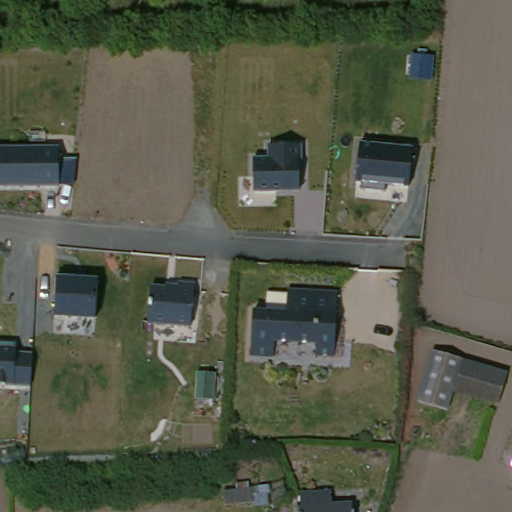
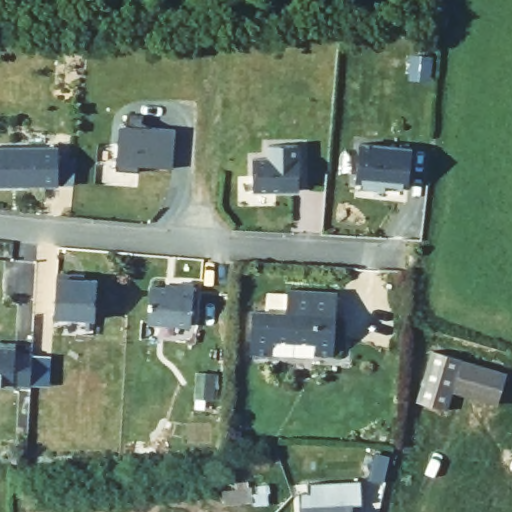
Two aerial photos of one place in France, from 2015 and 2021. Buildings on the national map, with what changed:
new [(120,125),(128,126),(128,115),(143,116),(142,126),(176,130),(172,167),(139,164),(138,171),(117,169),(120,125)]
unchanged [(411,147),(407,185),(383,183),(382,189),(357,187),(358,180),(352,180),(356,142),(411,147)]
unchanged [(253,159),(267,159),(267,145),(299,145),(300,193),(253,194),(253,159)]
unchanged [(58,146),(59,159),(76,159),(71,187),(58,187),(0,187),(0,147),(58,146)]
unchanged [(55,276),(97,280),(96,321),(53,318),(55,276)]
unchanged [(174,287),(174,282),(190,283),(187,324),(144,321),(146,285),(174,287)]
unchanged [(251,311),(284,310),(284,289),(333,291),(331,355),(310,355),(311,342),(271,340),(271,357),(249,356),(251,311)]
unchanged [(16,345),(17,354),(31,355),(30,388),(0,385),(0,344),(16,345)]
unchanged [(499,406),(457,392),(451,408),(423,400),(435,351),(507,374),(499,406)]
new [(298,493),(309,492),(309,483),(360,481),(361,504),(352,504),(353,512),(299,512),(298,493)]
demolished [(352,512),(302,512),(303,490),(331,492),(330,507),(352,508),(352,512)]
unchanged [(257,509),(231,512),(230,498),(255,494),(257,509)]

